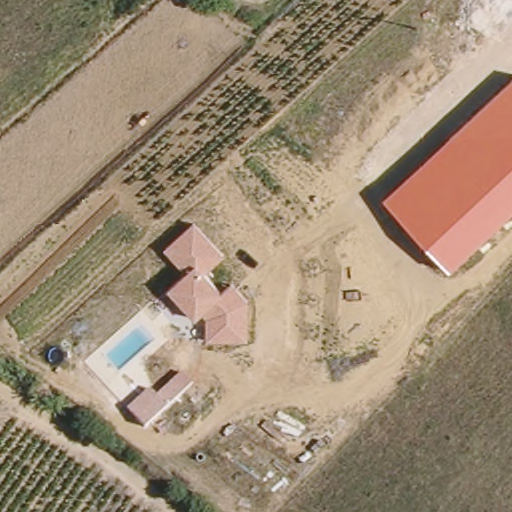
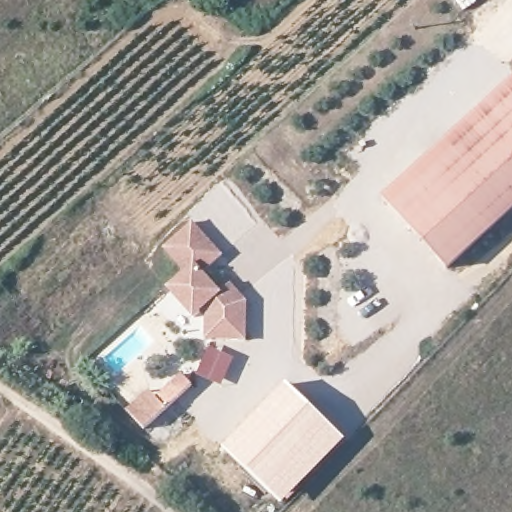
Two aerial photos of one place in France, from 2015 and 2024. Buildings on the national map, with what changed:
unchanged [(383,197),(512,78),(512,212),(449,271),(383,197)]
unchanged [(226,254),(207,272),(222,291),(233,282),(249,299),(248,342),(206,340),(206,317),(202,312),(195,318),(166,287),(185,270),(165,248),(194,222),(226,254)]
unchanged [(195,385),(148,430),(129,411),(150,391),(156,398),(183,373),(195,385)]
new [(223,448),(286,383),(345,440),(283,505),(223,448)]

